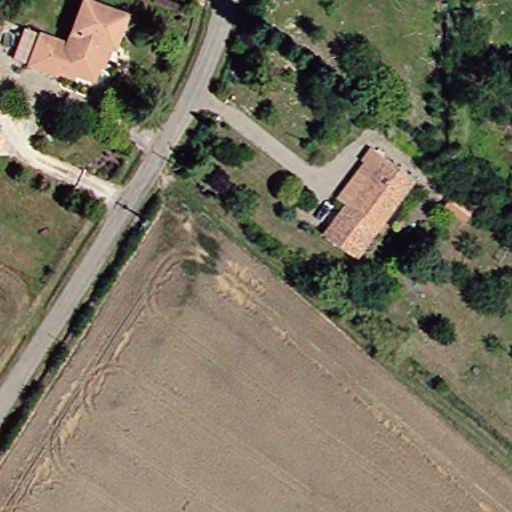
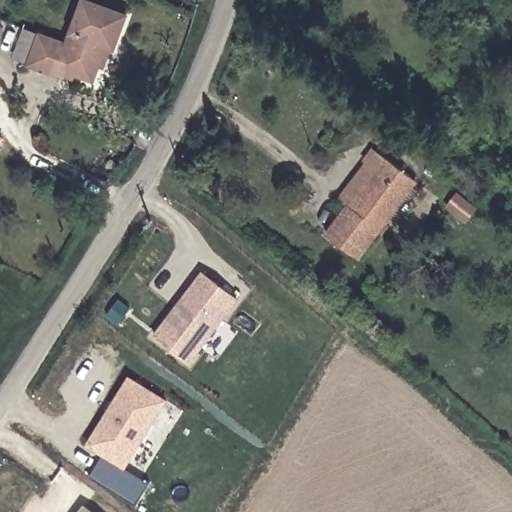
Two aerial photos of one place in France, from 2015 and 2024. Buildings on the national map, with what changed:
unchanged [(117,13),(104,48),(96,45),(83,80),(49,67),(46,74),(18,64),(29,33),(56,42),(73,0),(81,0),(117,13)]
unchanged [(338,204),(350,209),(358,197),(352,193),(380,154),(406,174),(351,256),(317,236),(338,204)]
new [(201,271),(236,298),(186,361),(152,334),(201,271)]
new [(127,375),(164,398),(121,466),(84,443),(127,375)]
new [(90,512),(78,512),(82,506),(90,512)]

